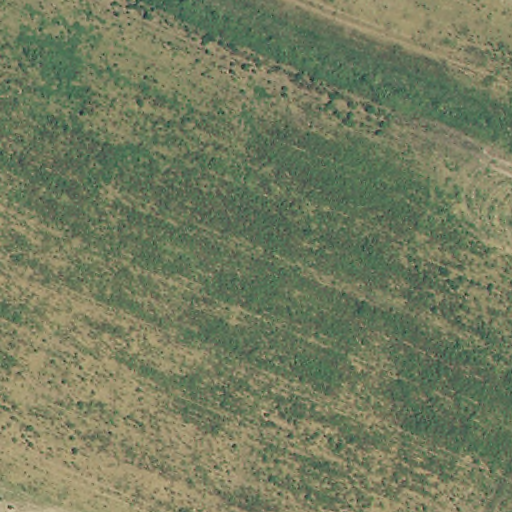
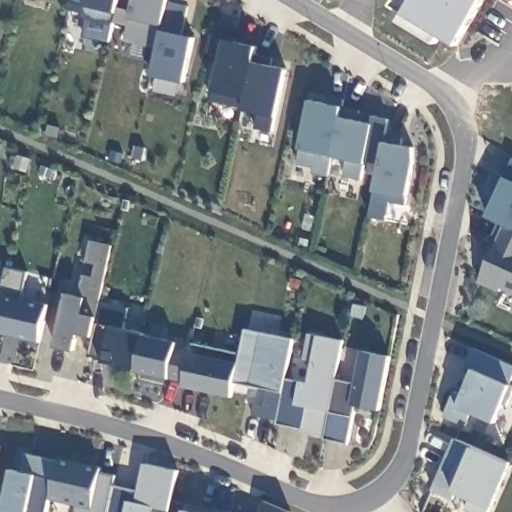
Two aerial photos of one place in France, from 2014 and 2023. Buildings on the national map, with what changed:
new [(158,47),(125,40),(128,24),(113,21),(113,24),(87,18),(84,12),(67,7),(68,0),(118,0),(116,5),(130,9),(132,0),(168,0),(188,5),(183,32),(194,35),(184,82),(153,74),(158,47)]
new [(444,37),(440,44),(401,22),(412,0),(485,0),(459,46),(444,37)]
new [(255,127),(259,112),(243,109),(212,101),(214,89),(219,55),(207,52),(210,33),(224,37),(254,45),(250,60),(284,69),(275,115),(272,130),(255,127)]
new [(344,175),(348,160),(331,156),(328,176),(312,174),(312,166),(298,164),(301,147),(309,100),(342,106),(359,110),(358,119),(372,122),(364,161),(360,179),(344,175)]
new [(387,202),(390,192),(375,190),(383,140),(414,146),(414,163),(407,197),(405,205),(387,202)]
new [(501,285),(498,288),(481,280),(496,247),(489,243),(501,221),(487,214),(506,175),(512,160),(512,291),(501,285)]
new [(168,377),(135,368),(103,361),(89,356),(100,300),(130,307),(126,326),(145,330),(144,334),(177,340),(177,346),(193,349),(185,383),(168,377)]
new [(279,423),(279,419),(254,415),(255,403),(265,405),(268,389),(236,382),(247,328),(294,337),(287,378),(308,381),(312,360),(304,359),(309,331),(319,333),(345,338),(338,380),(355,382),(362,348),(389,354),(379,410),(356,405),(349,443),(325,439),(330,410),(309,406),(304,428),(279,423)]
new [(444,415),(457,389),(463,392),(472,370),(466,366),(474,347),(512,364),(512,383),(512,384),(512,399),(509,406),(504,403),(496,422),(472,412),(466,425),(444,415)]
new [(466,509),(471,498),(458,492),(454,498),(431,489),(454,436),(473,445),(512,462),(491,507),(489,512),(472,512),(466,509)]
new [(8,510),(2,510),(9,468),(20,470),(24,452),(58,459),(58,456),(100,465),(99,472),(116,475),(114,485),(139,490),(144,461),(179,468),(171,510),(154,506),(153,512),(75,512),(76,503),(49,497),(46,512),(7,512),(8,510)]
new [(262,497),(292,511),(291,512),(259,512),(262,497)]
new [(183,507),(185,501),(232,510),(232,512),(182,512),(183,507)]

